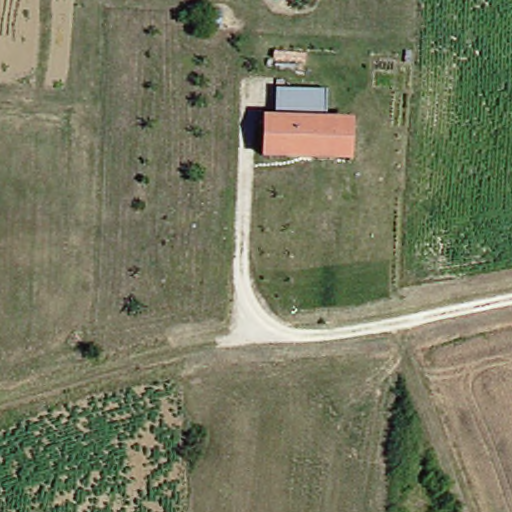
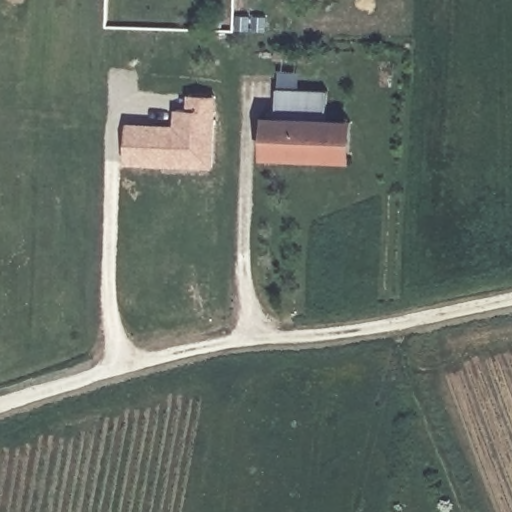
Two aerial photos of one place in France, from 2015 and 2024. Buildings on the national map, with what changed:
unchanged [(220,11),(220,0),(229,0),(229,12),(220,11)]
unchanged [(276,2),(275,0),(295,0),(295,4),(276,2)]
unchanged [(272,157),(272,120),(281,120),(281,90),(330,92),(330,122),(340,122),(353,122),(354,161),(341,160),(317,160),(295,159),(272,157)]
new [(174,109),(187,109),(188,94),(215,95),(211,165),(126,161),(128,121),(174,124),(174,109)]

